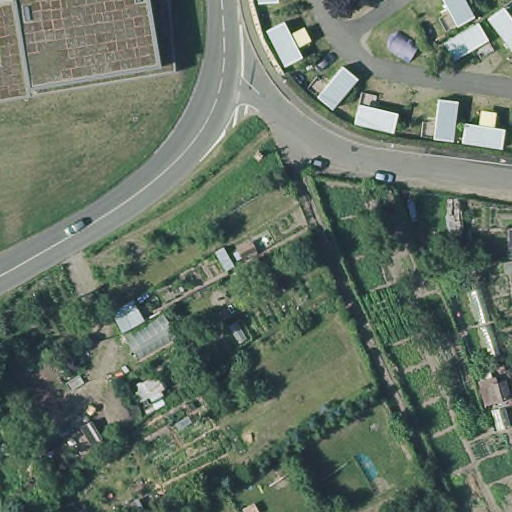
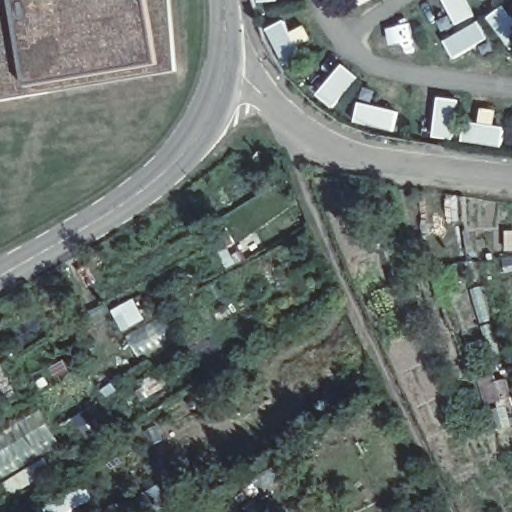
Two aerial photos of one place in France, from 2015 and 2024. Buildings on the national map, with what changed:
unchanged [(0,100),(0,0),(172,0),(181,70),(0,100)]
unchanged [(123,333),(110,310),(131,298),(143,321),(123,333)]
unchanged [(485,407),(481,381),(504,375),(509,401),(485,407)]
new [(43,407),(64,446),(0,482),(0,431),(43,407)]

